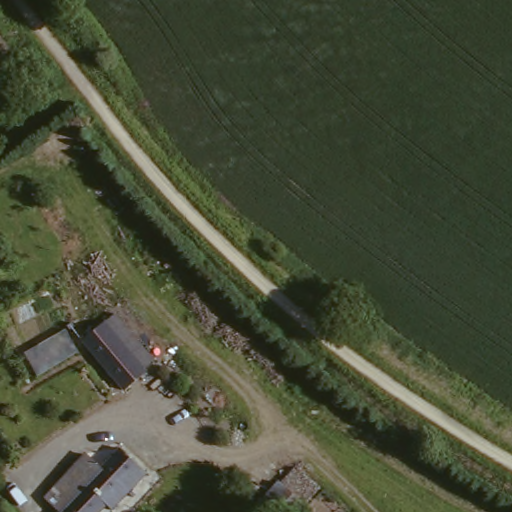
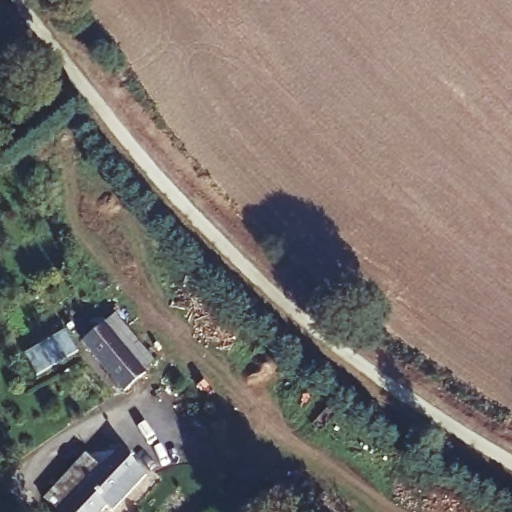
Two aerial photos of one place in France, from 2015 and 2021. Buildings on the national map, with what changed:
unchanged [(153,366),(128,391),(84,341),(111,317),(153,366)]
unchanged [(79,350),(34,376),(22,349),(67,325),(79,350)]
unchanged [(97,512),(50,512),(40,502),(83,457),(96,469),(107,458),(114,449),(144,477),(137,485),(112,512),(103,512),(100,509),(97,512)]
unchanged [(290,512),(262,512),(250,503),(277,476),(302,500),(290,512)]

